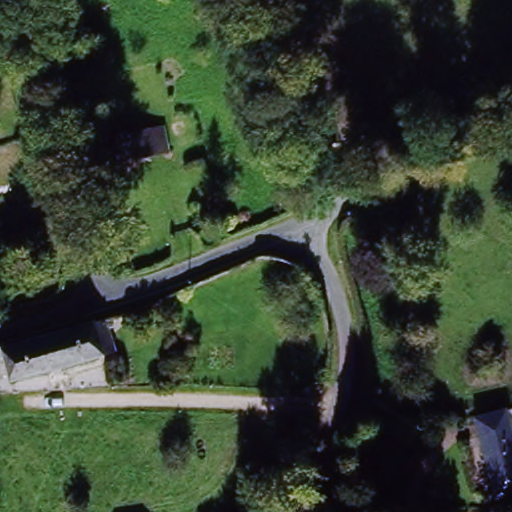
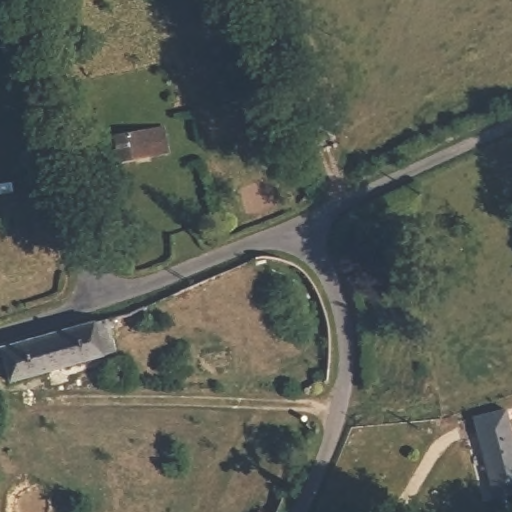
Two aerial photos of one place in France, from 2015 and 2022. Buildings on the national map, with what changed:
unchanged [(511,81),(502,63),(512,58),(512,81),(511,81)]
unchanged [(168,155),(119,162),(117,142),(166,134),(168,155)]
unchanged [(104,323),(113,356),(2,387),(0,377),(0,350),(57,335),(104,323)]
unchanged [(502,502),(477,425),(507,416),(512,434),(512,498),(502,502)]
unchanged [(272,512),(295,449),(315,458),(293,512),(272,512)]

